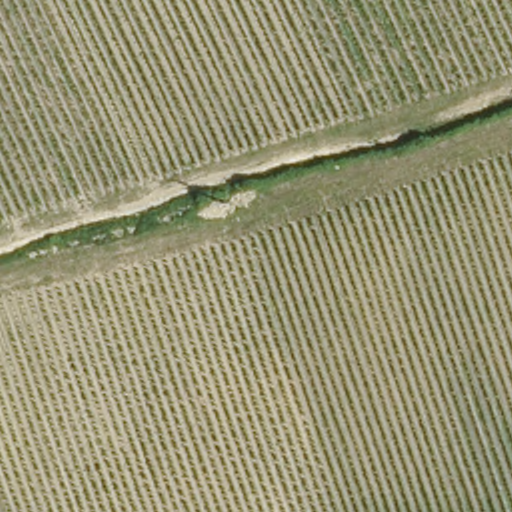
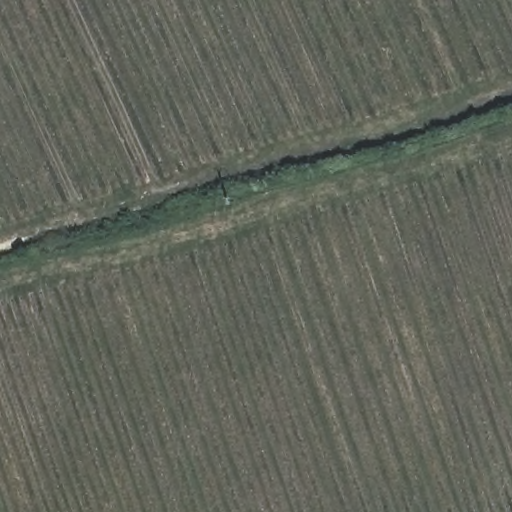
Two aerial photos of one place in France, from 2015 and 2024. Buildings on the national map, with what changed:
[]

